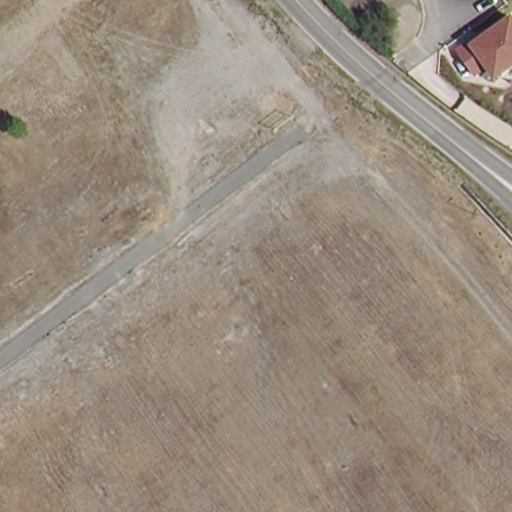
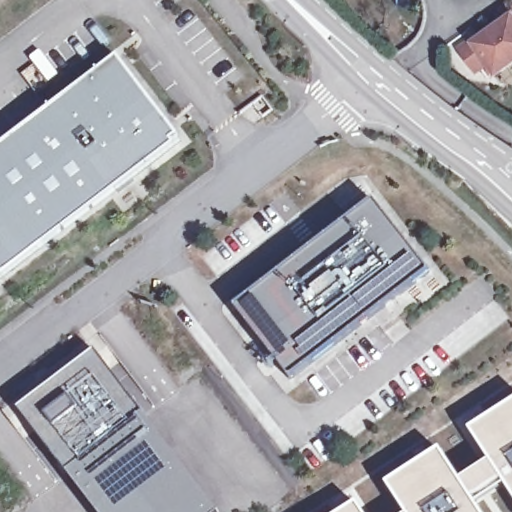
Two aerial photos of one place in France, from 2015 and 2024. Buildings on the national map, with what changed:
unchanged [(496,80),(487,68),(476,77),(456,49),(467,41),(471,45),(512,13),(512,68),(496,80)]
new [(177,137),(180,142),(173,147),(2,278),(0,280),(0,148),(117,58),(177,137)]
new [(373,201),(430,274),(292,381),(235,308),(373,201)]
new [(216,512),(94,512),(18,411),(96,353),(216,512)]
new [(387,486),(440,450),(460,481),(491,461),(470,430),(512,403),(512,498),(505,486),(475,505),(480,512),(403,512),(387,486)]
new [(357,505),(361,512),(346,512),(357,505)]

